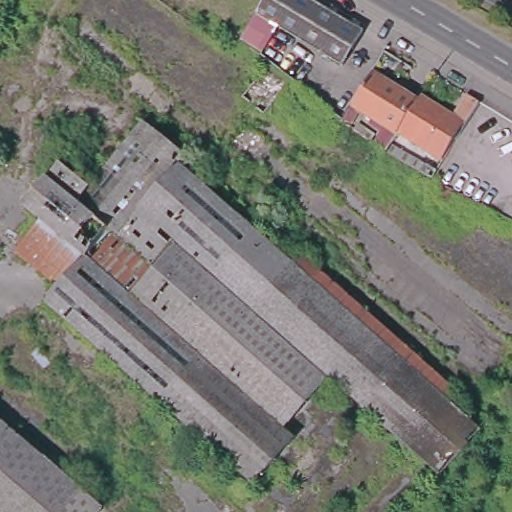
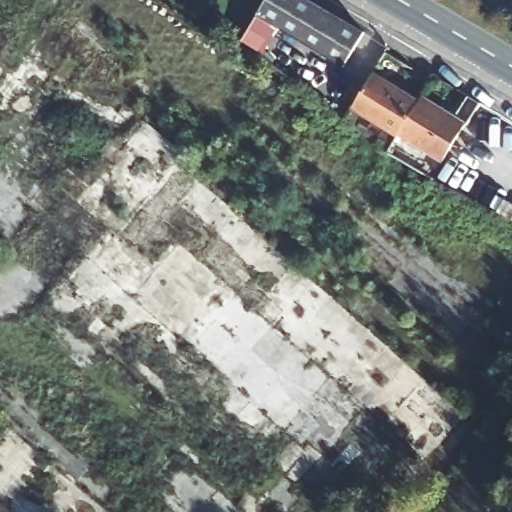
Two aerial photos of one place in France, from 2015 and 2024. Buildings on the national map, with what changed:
unchanged [(362,25),(340,63),(250,13),(257,0),(319,0),(322,1),(362,25)]
demolished [(293,75),(265,110),(244,94),(270,58),(293,75)]
unchanged [(416,99),(395,133),(350,106),(370,71),(416,99)]
unchanged [(419,94),(452,113),(465,92),(478,100),(442,161),(395,133),(416,99),(419,94)]
demolished [(52,160),(80,184),(133,115),(487,424),(445,473),(329,371),(322,379),(236,306),(157,398),(41,299),(53,284),(80,251),(35,215),(19,202),(52,160)]
demolished [(80,251),(53,284),(10,247),(35,215),(80,251)]
demolished [(281,427),(294,437),(255,479),(157,398),(236,306),(322,379),(281,427)]
demolished [(93,496),(80,512),(0,512),(0,414),(93,496)]

